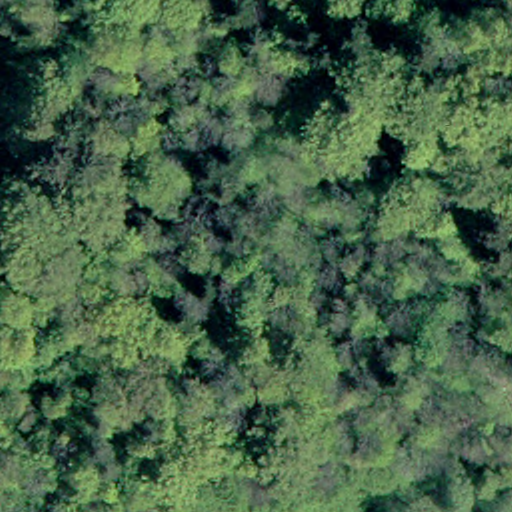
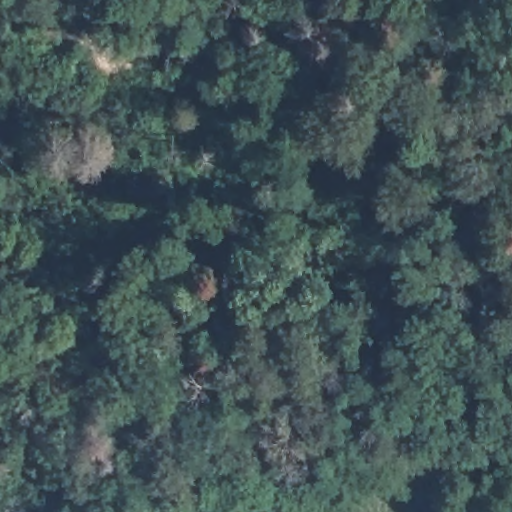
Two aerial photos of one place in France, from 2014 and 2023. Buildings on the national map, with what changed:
[]

